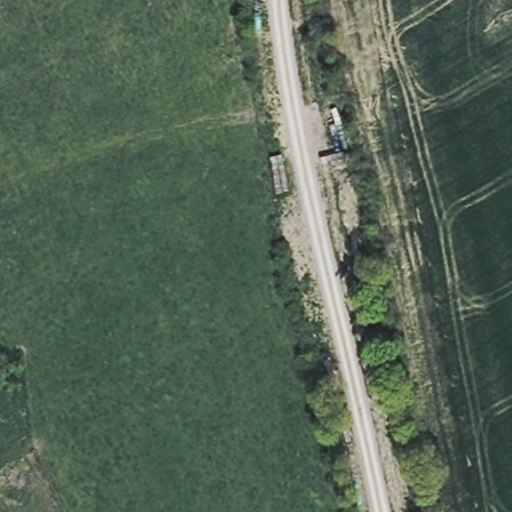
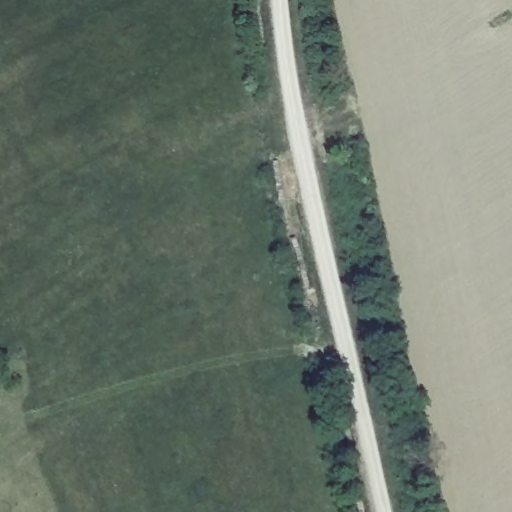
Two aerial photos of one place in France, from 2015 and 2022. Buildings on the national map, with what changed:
[]

